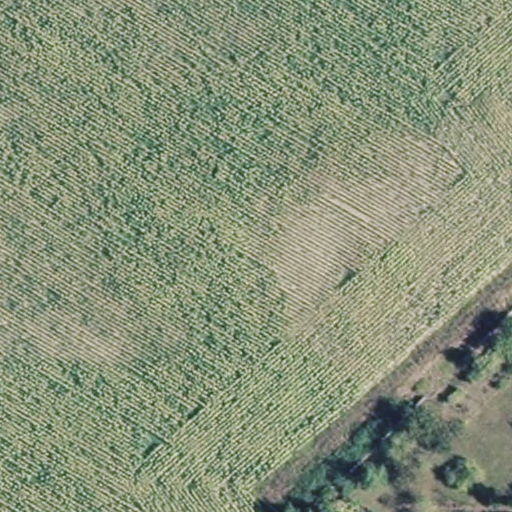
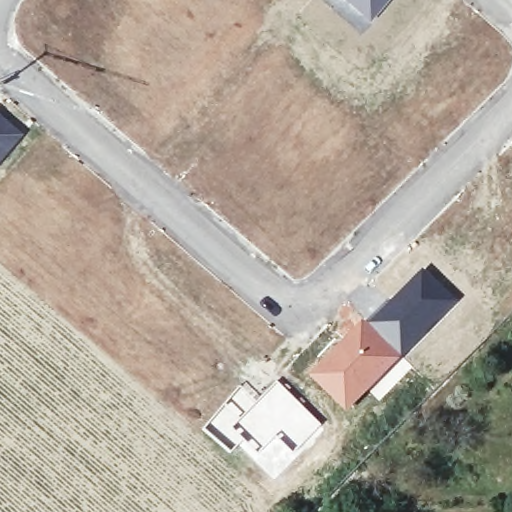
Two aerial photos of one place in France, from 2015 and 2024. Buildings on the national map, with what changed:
new [(341,0),(390,0),(369,25),(341,0)]
new [(0,160),(0,115),(23,134),(0,160)]
new [(425,268),(458,299),(402,356),(367,319),(425,268)]
new [(340,342),(367,319),(402,356),(403,357),(403,358),(412,367),(379,400),(370,391),(348,412),(309,374),(340,342)]
new [(240,386),(256,399),(277,379),(322,424),(274,479),(238,445),(229,454),(202,429),(240,386)]

